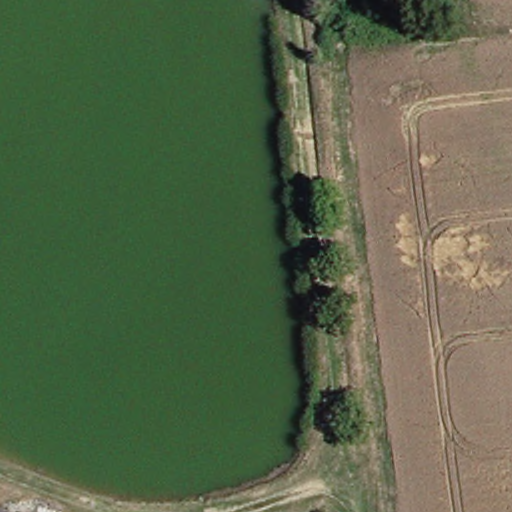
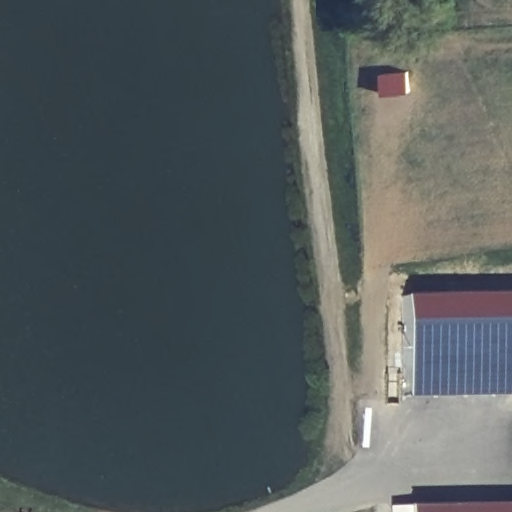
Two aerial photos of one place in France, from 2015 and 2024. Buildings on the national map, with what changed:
new [(512,397),(403,400),(402,297),(512,295),(512,397)]
new [(407,508),(512,505),(512,512),(407,512),(407,508)]

